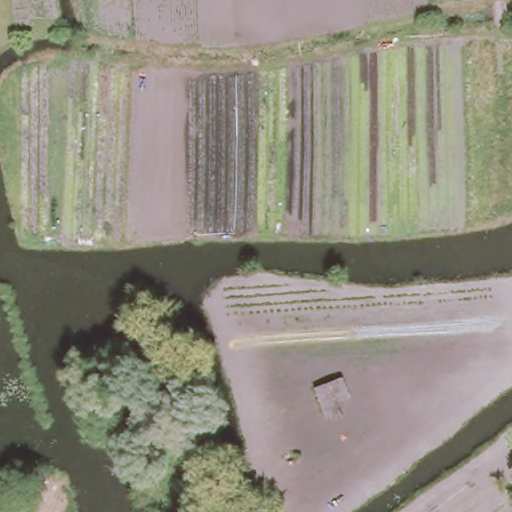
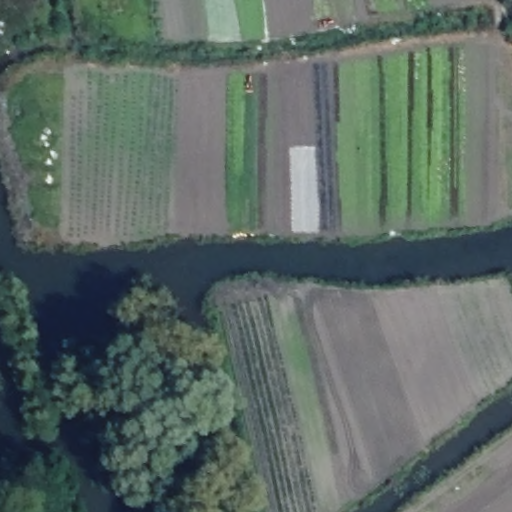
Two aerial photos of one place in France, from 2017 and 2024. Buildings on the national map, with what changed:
unchanged [(95,366),(98,378),(83,383),(79,371),(95,366)]
unchanged [(169,427),(145,434),(138,406),(162,397),(169,427)]

